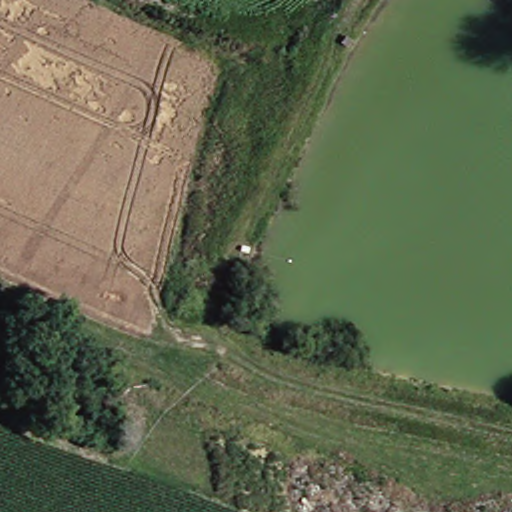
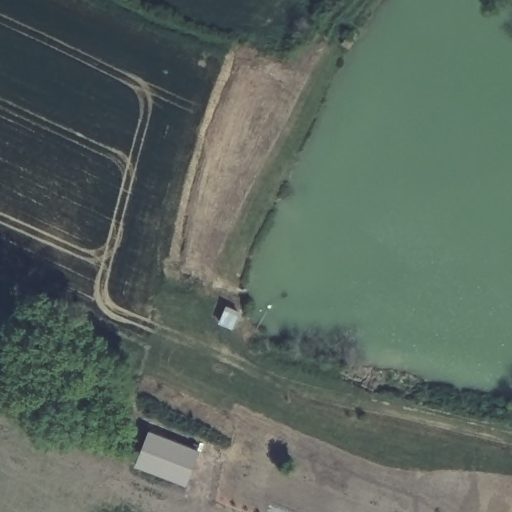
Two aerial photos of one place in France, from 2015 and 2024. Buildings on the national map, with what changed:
new [(201,449),(187,485),(135,465),(149,428),(201,449)]

